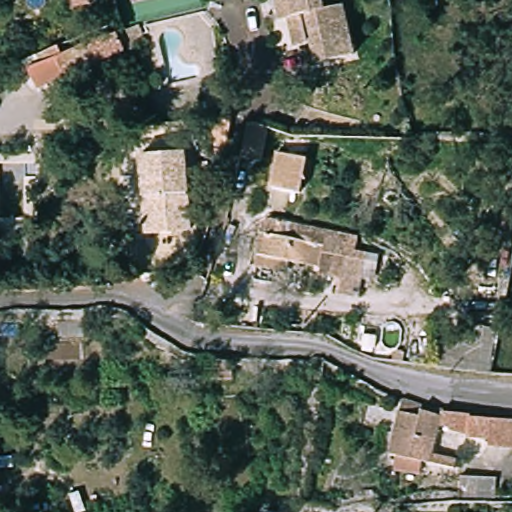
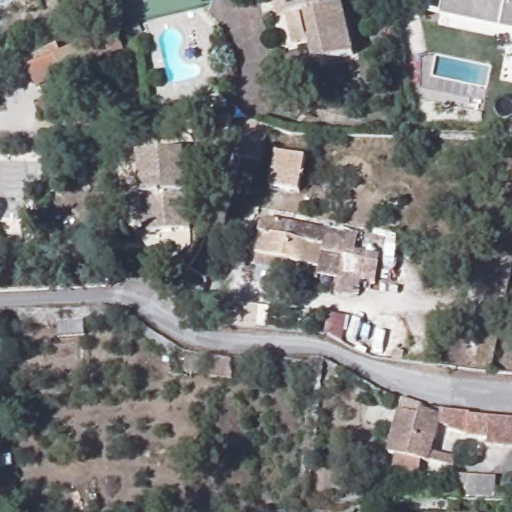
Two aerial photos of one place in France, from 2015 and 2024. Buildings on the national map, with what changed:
unchanged [(73,0),(96,0),(75,7),(73,0)]
unchanged [(343,0),(351,0),(363,47),(316,59),(311,39),(296,43),(289,14),(281,16),(278,0),(324,0),(326,5),(343,0)]
new [(442,12),(444,0),(512,0),(512,28),(442,12)]
unchanged [(80,74),(35,91),(26,69),(113,35),(120,58),(80,74)]
unchanged [(257,126),(256,151),(236,151),(236,123),(257,126)]
unchanged [(301,153),(300,186),(276,185),(279,152),(301,153)]
unchanged [(141,196),(138,156),(183,156),(185,194),(190,235),(145,237),(141,196)]
unchanged [(266,237),(277,239),(281,219),(352,234),(343,279),(322,275),(323,271),(288,264),(286,275),(260,269),(266,237)]
unchanged [(348,296),(352,274),(358,275),(358,272),(362,272),(358,297),(348,296)]
unchanged [(91,320),(90,338),(66,338),(66,320),(91,320)]
unchanged [(489,369),(436,362),(437,358),(439,341),(492,347),(490,360),(489,369)]
unchanged [(200,374),(186,373),(186,359),(200,363),(200,374)]
unchanged [(237,382),(215,384),(215,366),(228,367),(237,367),(237,382)]
unchanged [(397,468),(400,456),(385,452),(397,402),(428,416),(477,418),(512,419),(512,444),(489,442),(480,437),(468,430),(443,427),(437,452),(458,458),(455,470),(434,465),(424,462),(421,474),(397,468)]
unchanged [(458,498),(461,478),(496,485),(493,504),(458,498)]

